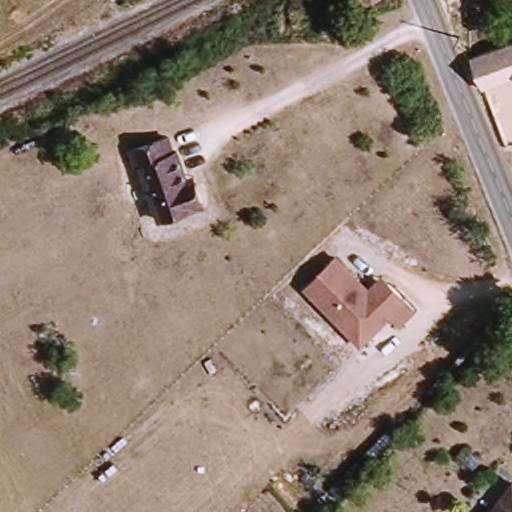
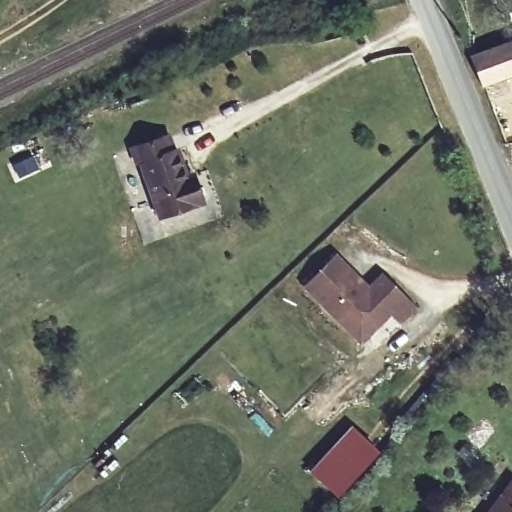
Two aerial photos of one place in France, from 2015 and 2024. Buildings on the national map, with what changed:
demolished [(382,3),(366,7),(364,1),(363,0),(381,0),(382,3)]
unchanged [(512,76),(482,87),(469,54),(512,38),(512,76)]
unchanged [(181,150),(184,149),(194,185),(199,184),(205,202),(164,215),(148,160),(144,161),(140,145),(176,135),(181,150)]
unchanged [(402,326),(393,315),(364,344),(309,288),(338,258),(369,291),(383,277),(390,284),(417,311),(402,326)]
new [(338,496),(313,471),(354,426),(381,452),(338,496)]
unchanged [(512,481),(512,512),(487,512),(509,480),(512,481)]

